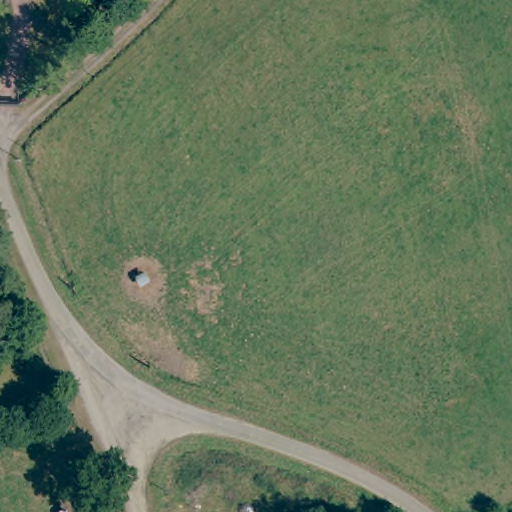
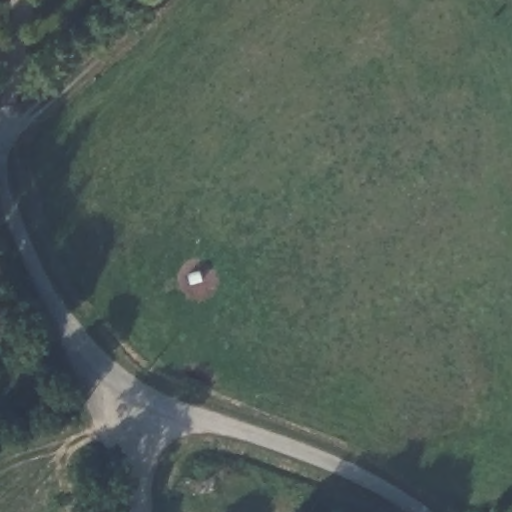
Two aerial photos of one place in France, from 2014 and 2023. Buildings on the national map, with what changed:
[]

